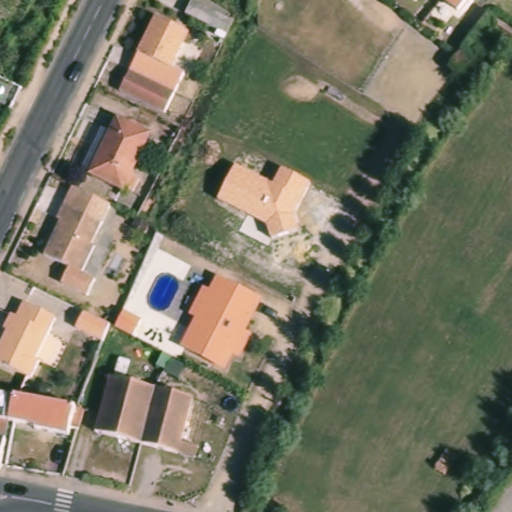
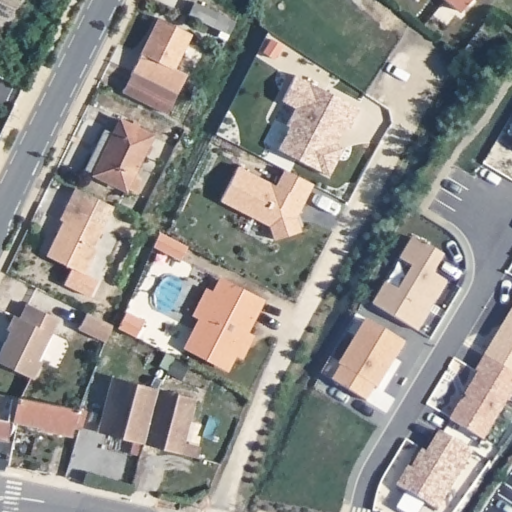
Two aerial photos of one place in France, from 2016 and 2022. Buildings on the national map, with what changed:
unchanged [(464,17),(443,0),(477,0),(464,17)]
unchanged [(227,35),(220,32),(186,18),(193,4),(226,20),(233,23),(227,35)]
unchanged [(188,34),(171,69),(184,75),(174,96),(165,91),(140,78),(130,73),(139,55),(156,19),(188,34)]
unchanged [(140,78),(165,91),(174,96),(175,96),(164,116),(120,93),(130,73),(140,78)]
new [(277,150),(288,128),(285,126),(294,109),(280,101),(294,74),(358,108),(347,129),(343,127),(334,144),(343,148),(327,177),(277,150)]
unchanged [(107,130),(116,135),(123,122),(155,137),(135,177),(145,182),(137,195),(128,191),(128,193),(86,172),(107,130)]
unchanged [(273,184),(282,170),(311,184),(294,217),(300,231),(272,238),(269,224),(219,201),(236,167),(273,184)]
unchanged [(112,219),(100,213),(103,207),(115,213),(112,219)]
unchanged [(96,252),(100,253),(86,280),(49,262),(66,227),(63,226),(69,212),(107,230),(96,252)]
new [(373,306),(385,283),(400,290),(412,267),(399,259),(412,237),(442,256),(433,275),(447,283),(417,330),(373,306)]
unchanged [(248,354),(240,350),(233,365),(194,345),(209,316),(202,312),(214,289),(221,292),(225,283),(264,303),(249,334),(256,337),(248,354)]
unchanged [(39,363),(31,381),(0,365),(0,348),(8,333),(5,331),(11,317),(16,320),(24,305),(56,321),(36,362),(39,363)]
new [(449,422),(478,374),(475,372),(512,308),(512,396),(510,400),(508,399),(484,441),(449,422)]
unchanged [(104,343),(78,330),(85,313),(111,326),(104,343)]
new [(331,382),(340,367),(338,366),(365,320),(405,343),(378,390),(375,389),(367,403),(331,382)]
unchanged [(196,459),(179,455),(97,434),(111,379),(154,391),(193,400),(182,444),(199,448),(196,459)]
unchanged [(84,417),(81,430),(79,437),(70,435),(69,442),(36,436),(36,432),(10,427),(6,446),(1,473),(0,477),(0,401),(76,415),(84,417)]
new [(426,506),(422,512),(400,512),(394,508),(405,491),(397,485),(407,467),(410,470),(421,451),(425,454),(439,433),(471,451),(436,511),(426,506)]

